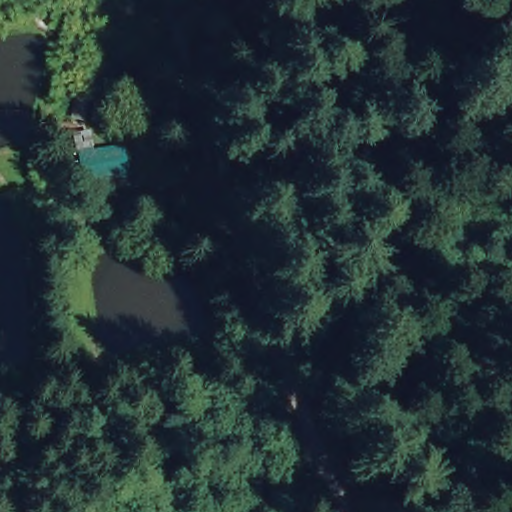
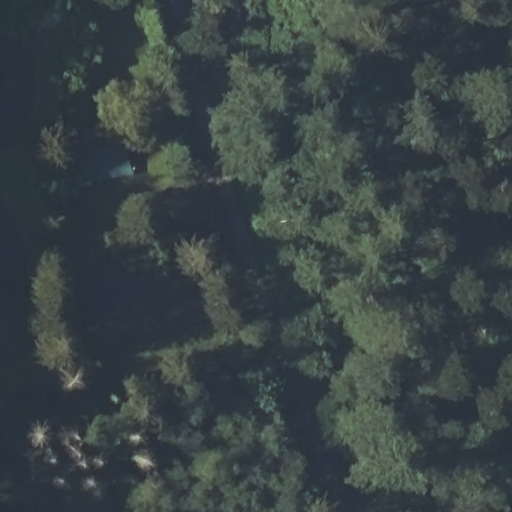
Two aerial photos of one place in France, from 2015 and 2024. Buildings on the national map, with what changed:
unchanged [(97,186),(93,153),(131,149),(135,179),(97,186)]

